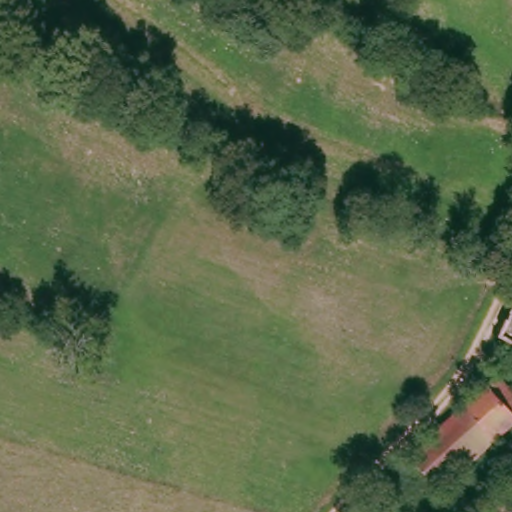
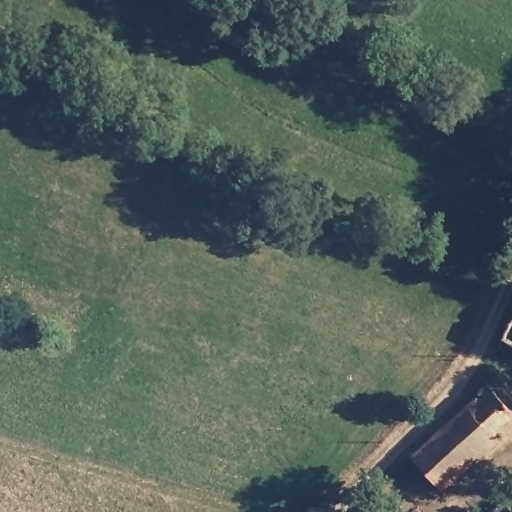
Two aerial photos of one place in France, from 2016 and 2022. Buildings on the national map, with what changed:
unchanged [(512,316),(512,346),(500,341),(512,316)]
unchanged [(504,374),(512,387),(512,431),(441,492),(412,456),(504,374)]
unchanged [(503,496),(510,512),(472,512),(503,496)]

